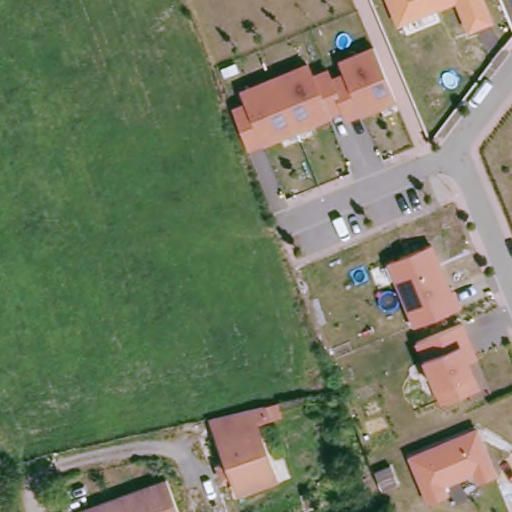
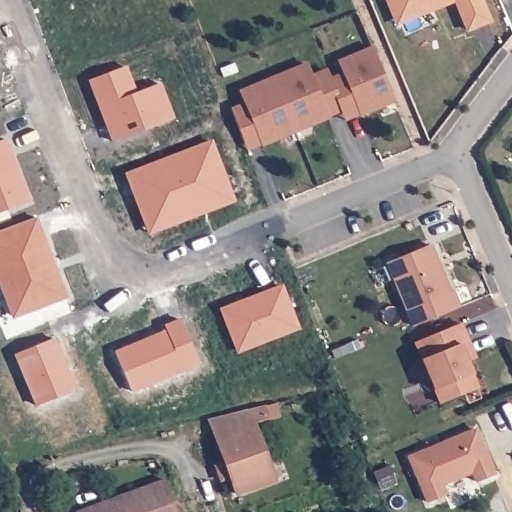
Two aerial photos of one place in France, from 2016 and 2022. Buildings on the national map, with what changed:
unchanged [(383,0),(451,0),(393,24),(383,0)]
unchanged [(455,0),(484,0),(491,19),(465,30),(455,0)]
unchanged [(344,120),(340,111),(247,148),(230,104),(242,99),(237,87),(307,60),(312,72),(327,66),(330,74),(341,69),(336,58),(371,44),(394,98),(344,120)]
new [(123,67),(133,94),(158,84),(171,120),(111,142),(88,81),(123,67)]
new [(0,213),(0,141),(4,139),(15,168),(14,169),(20,186),(22,186),(28,202),(0,213)]
new [(146,226),(126,175),(158,162),(180,154),(210,142),(225,182),(233,201),(203,213),(167,227),(149,234),(146,226)]
new [(56,276),(65,297),(13,317),(0,283),(0,231),(34,217),(40,234),(51,265),(56,276)]
unchanged [(412,323),(385,259),(430,242),(450,287),(453,287),(459,302),(412,323)]
new [(298,328),(237,352),(221,309),(281,286),(298,328)]
new [(198,363),(131,392),(115,353),(166,332),(164,327),(180,321),(198,363)]
unchanged [(438,401),(432,387),(420,356),(413,341),(461,321),(475,355),(467,360),(476,383),(438,401)]
new [(73,390),(35,407),(14,355),(52,338),(73,390)]
unchanged [(271,402),(274,422),(263,423),(275,483),(233,492),(215,415),(271,402)]
unchanged [(473,481),(470,471),(441,482),(445,492),(425,501),(405,454),(475,425),(496,471),(473,481)]
unchanged [(164,480),(177,512),(83,512),(164,480)]

